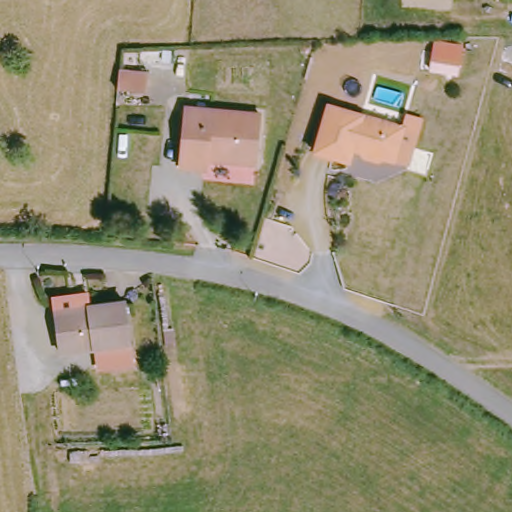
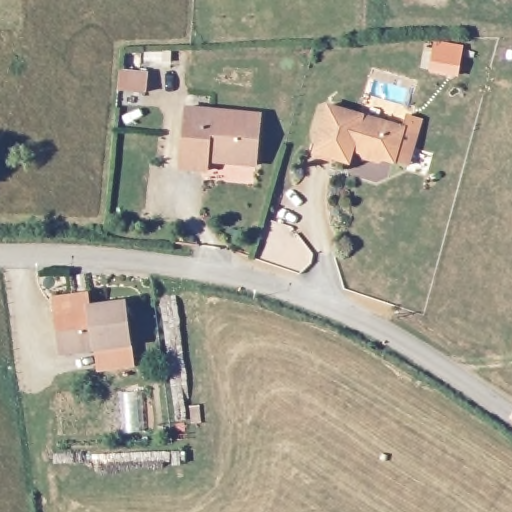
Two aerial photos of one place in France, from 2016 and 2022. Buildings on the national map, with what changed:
unchanged [(145,77),(143,96),(115,92),(118,74),(145,77)]
unchanged [(383,162),(378,164),(363,159),(360,154),(361,150),(354,147),(349,162),(314,152),(329,104),(404,129),(398,150),(393,165),(383,162)]
unchanged [(202,173),(183,171),(189,111),(264,118),(259,169),(211,164),(209,174),(202,173)]
unchanged [(90,311),(90,307),(129,302),(133,346),(63,354),(58,316),(90,311)]

